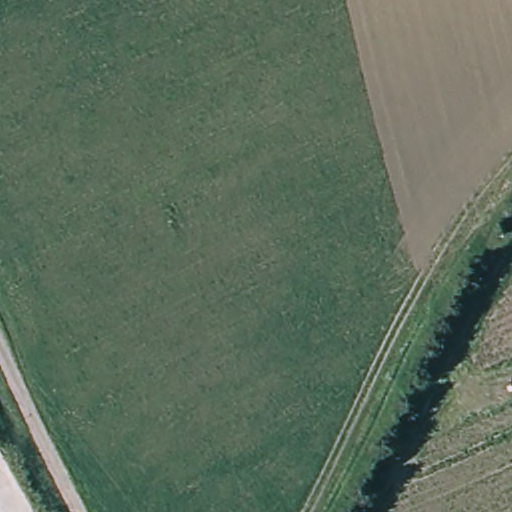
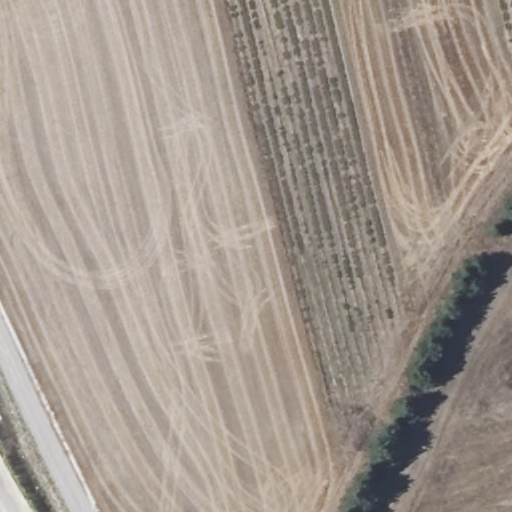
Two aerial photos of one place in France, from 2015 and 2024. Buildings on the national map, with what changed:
[]

